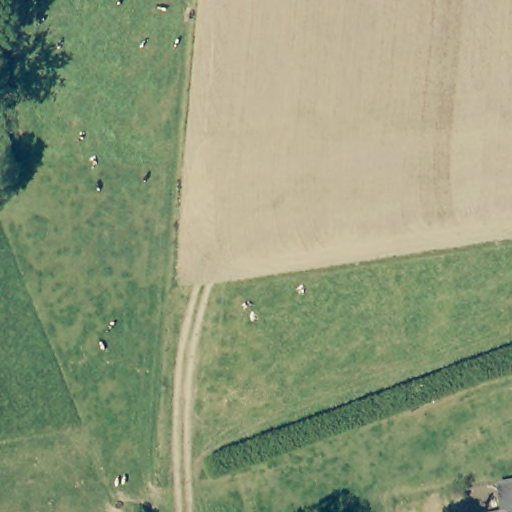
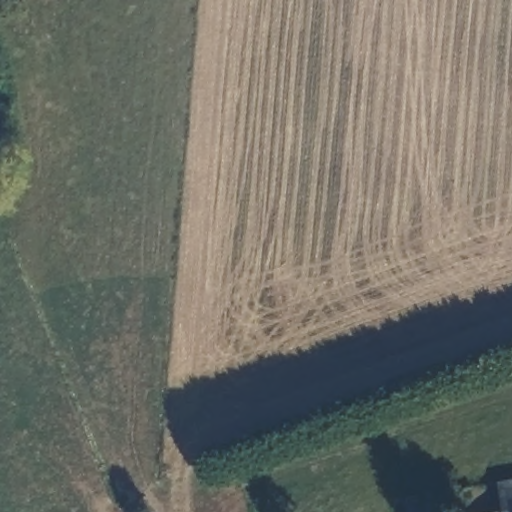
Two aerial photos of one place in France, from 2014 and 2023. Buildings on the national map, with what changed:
unchanged [(510,504),(505,479),(512,478),(512,512),(487,512),(486,510),(510,504)]

